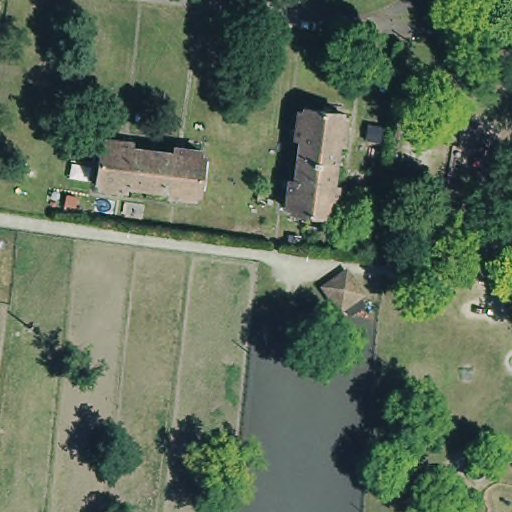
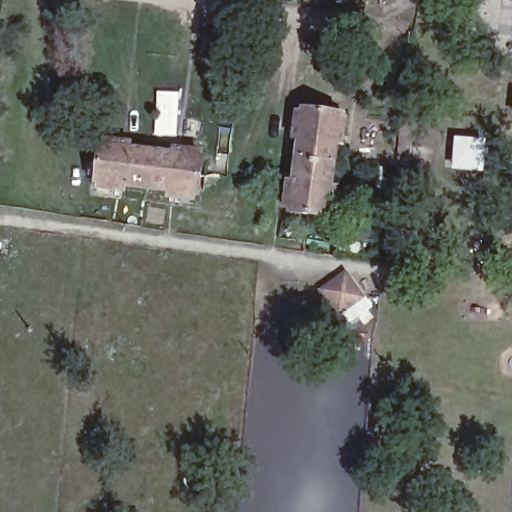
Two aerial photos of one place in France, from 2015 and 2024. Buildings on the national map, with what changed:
unchanged [(287,210),(280,210),(283,179),(290,179),(293,140),(287,140),(289,110),(297,111),(297,106),(337,111),(337,116),(344,117),(340,147),(335,146),(330,185),(337,186),(333,216),(327,215),(326,220),(286,215),(287,210)]
unchanged [(198,187),(193,186),(192,194),(162,190),(163,183),(123,179),(122,185),(94,182),(95,174),(90,173),(95,134),(100,134),(101,127),(130,130),(129,139),(167,143),(168,136),(200,140),(198,148),(203,148),(198,187)]
unchanged [(340,317),(331,307),(320,295),(340,276),(361,298),(348,309),(340,317)]

